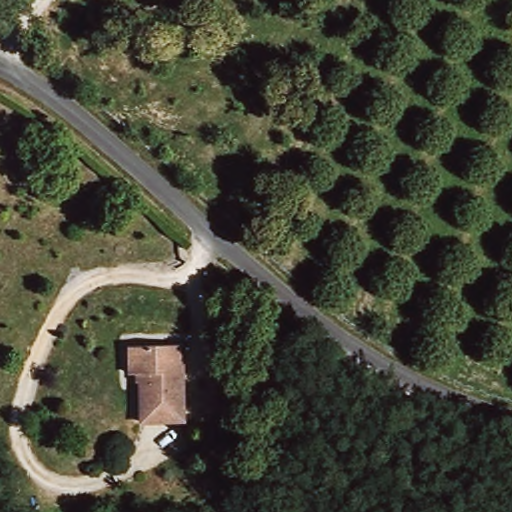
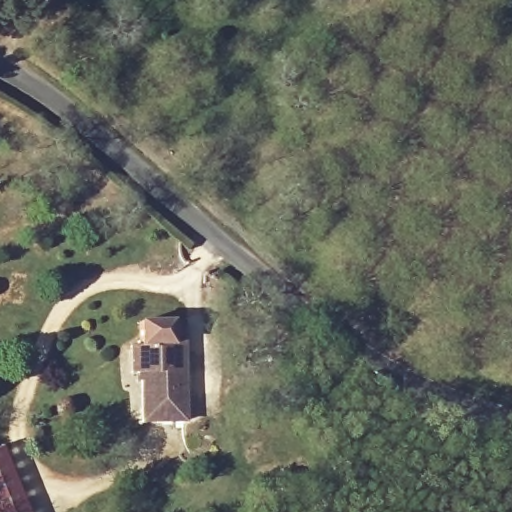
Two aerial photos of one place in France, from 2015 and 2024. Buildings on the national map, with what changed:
unchanged [(186,422),(143,424),(142,374),(130,374),(129,348),(142,348),(184,348),(186,422)]
new [(1,446),(27,512),(0,512),(0,446),(1,446)]
unchanged [(280,464),(299,464),(298,481),(280,479),(280,464)]

